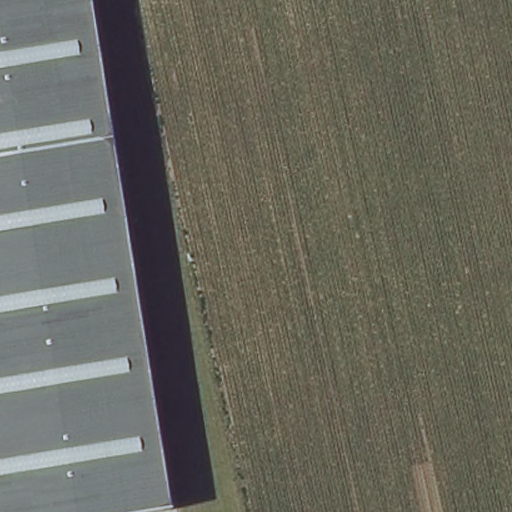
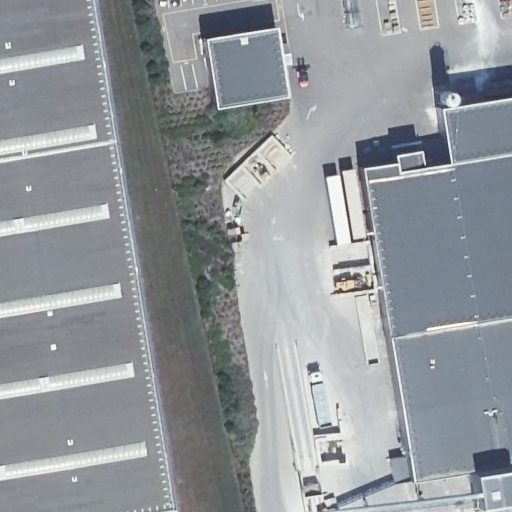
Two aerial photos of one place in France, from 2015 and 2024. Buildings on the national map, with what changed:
unchanged [(170,510),(157,512),(0,512),(0,0),(88,0),(170,510)]
new [(287,102),(217,113),(207,43),(278,34),(287,102)]
new [(512,474),(512,478),(512,510),(504,512),(480,512),(475,479),(416,488),(365,174),(399,169),(399,160),(422,159),(423,173),(453,168),(445,115),(512,105),(512,474)]

